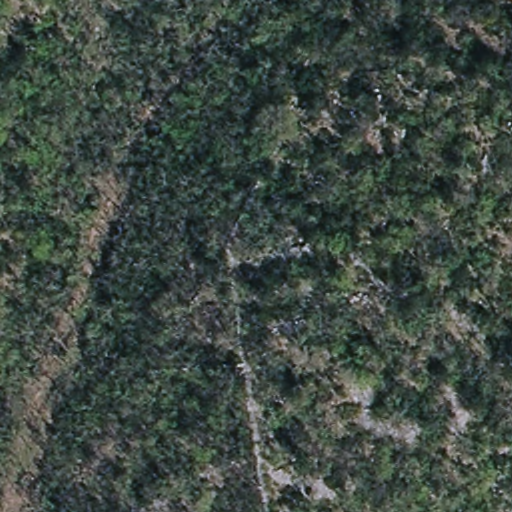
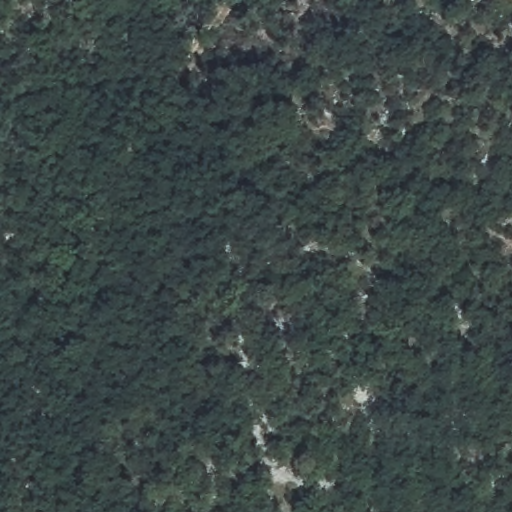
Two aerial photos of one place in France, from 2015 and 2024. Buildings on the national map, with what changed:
[]

